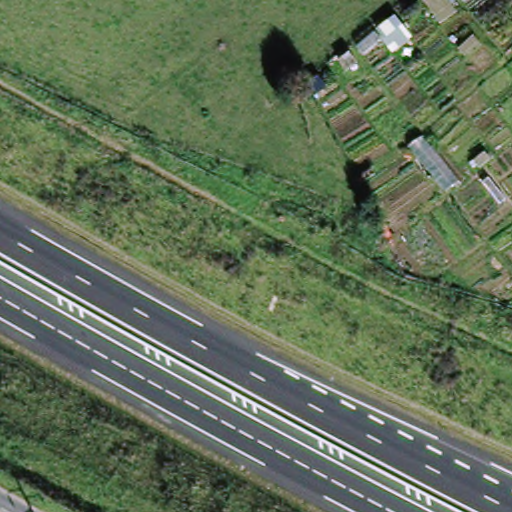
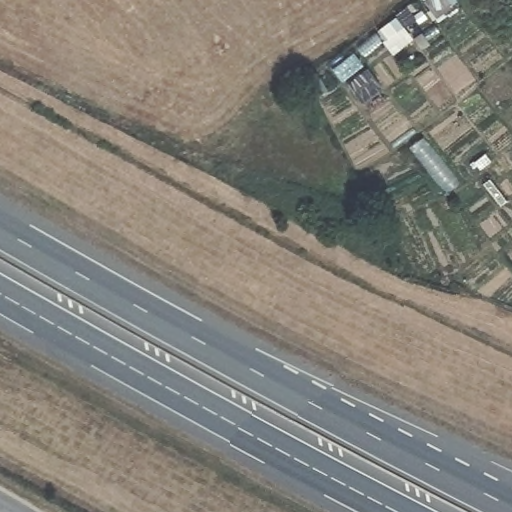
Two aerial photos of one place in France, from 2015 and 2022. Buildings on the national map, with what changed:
[]

